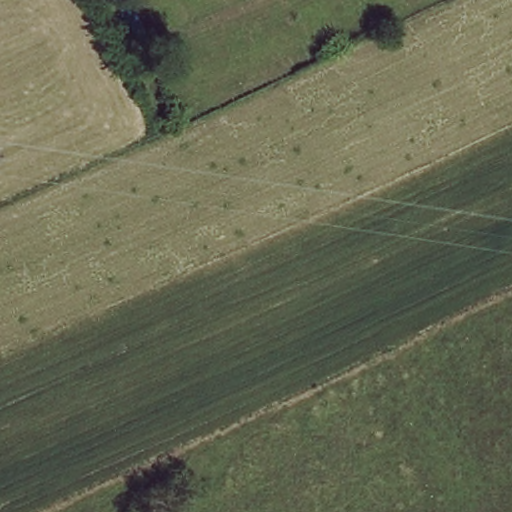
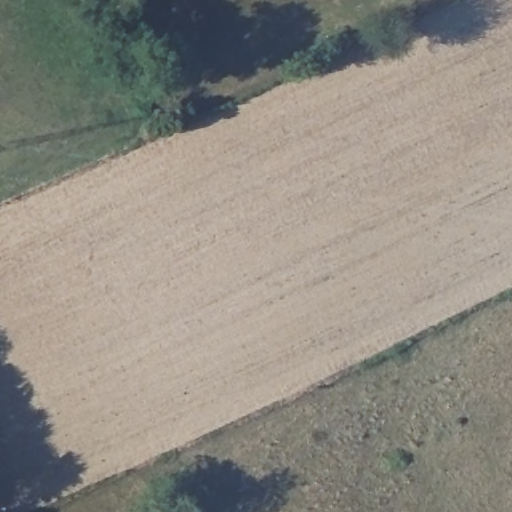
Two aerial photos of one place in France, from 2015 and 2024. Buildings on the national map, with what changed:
[]

